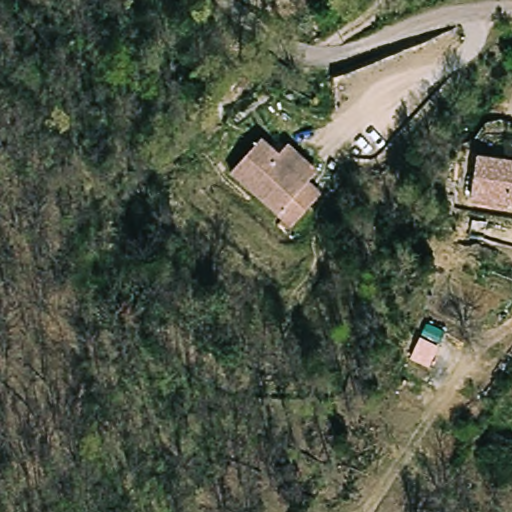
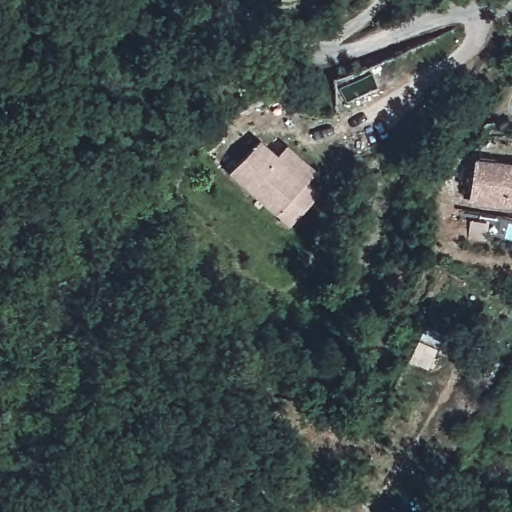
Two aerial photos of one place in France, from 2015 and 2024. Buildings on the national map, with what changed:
unchanged [(285,148),(314,177),(304,186),(317,199),(286,229),(227,170),(259,140),(276,156),(285,148)]
unchanged [(469,157),(512,163),(512,205),(462,198),(469,157)]

